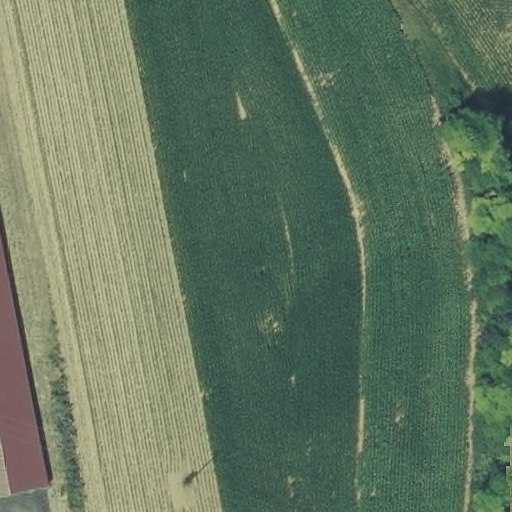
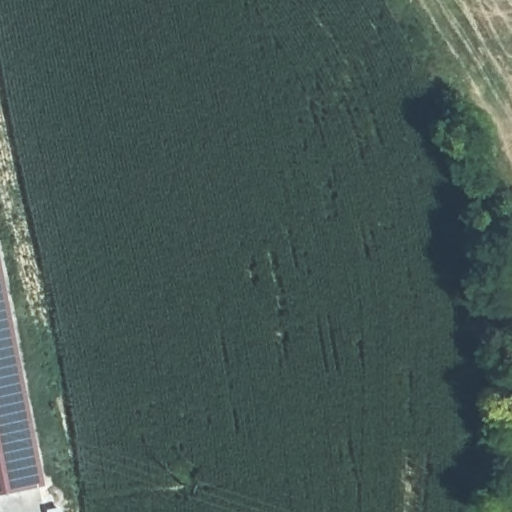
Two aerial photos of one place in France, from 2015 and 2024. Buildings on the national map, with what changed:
unchanged [(0,490),(0,272),(40,482),(0,490)]

